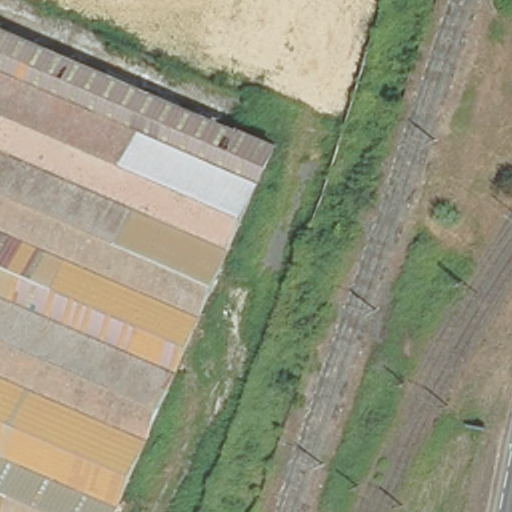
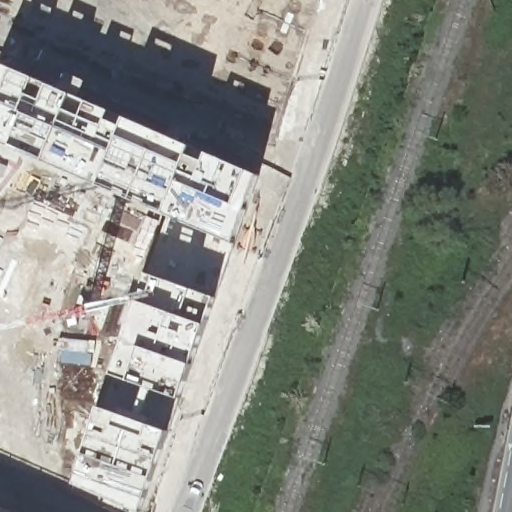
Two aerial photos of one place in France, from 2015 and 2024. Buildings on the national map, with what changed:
demolished [(0,20),(282,141),(121,512),(0,512),(0,20)]
new [(100,407),(145,273),(167,214),(12,148),(0,143),(0,79),(6,65),(15,70),(127,117),(195,148),(251,172),(257,175),(215,298),(207,325),(192,365),(169,431),(152,480),(140,511),(74,483),(84,453),(100,407)]
new [(0,506),(14,512),(0,512),(0,506)]

